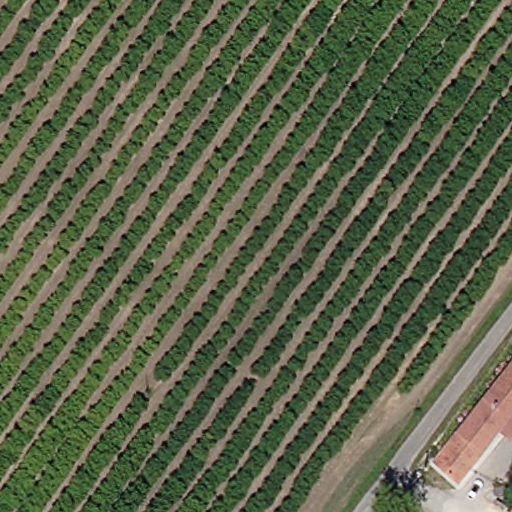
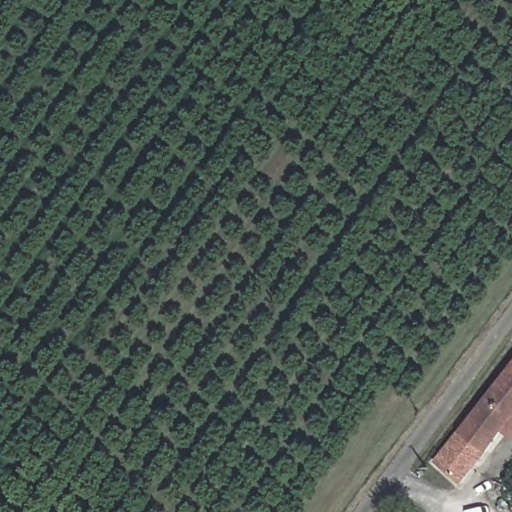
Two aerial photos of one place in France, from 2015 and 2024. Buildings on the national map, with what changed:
unchanged [(438,466),(512,370),(512,429),(468,488),(438,466)]

